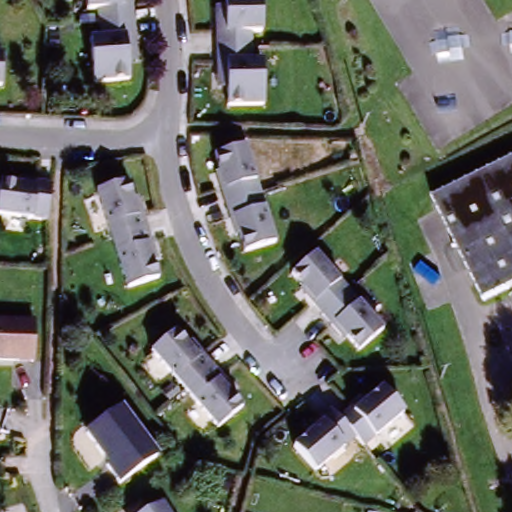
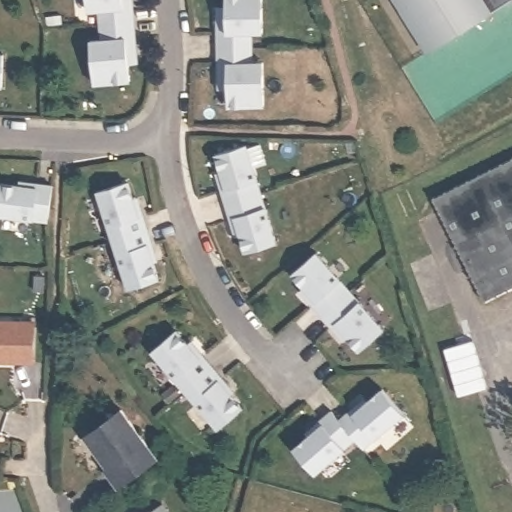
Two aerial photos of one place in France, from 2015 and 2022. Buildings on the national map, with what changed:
unchanged [(133,54),(125,54),(126,81),(91,84),(89,41),(100,40),(97,9),(86,10),(85,0),(129,0),(133,54)]
unchanged [(212,81),(210,14),(218,13),(217,0),(254,0),(255,29),(246,30),(246,61),(257,61),(258,104),(222,106),(221,81),(212,81)]
new [(512,14),(427,63),(389,0),(512,0),(512,14)]
unchanged [(5,55),(3,88),(0,88),(0,55),(5,55)]
unchanged [(245,259),(238,237),(234,238),(220,189),(221,184),(215,161),(244,153),(272,252),(245,259)]
unchanged [(435,208),(512,170),(512,292),(485,305),(435,208)]
unchanged [(123,293),(90,195),(119,186),(127,209),(133,207),(152,261),(145,264),(152,283),(123,293)]
unchanged [(53,192),(46,226),(17,223),(0,221),(0,189),(53,192)]
unchanged [(355,357),(338,338),(334,341),(304,306),(306,303),(287,280),(311,260),(377,339),(355,357)]
unchanged [(35,323),(34,361),(2,361),(0,361),(0,322),(35,323)]
unchanged [(215,431),(149,355),(172,335),(190,354),(193,351),(226,390),(222,394),(237,411),(215,431)]
unchanged [(314,425),(334,408),(340,416),(360,400),(363,403),(383,386),(404,412),(364,444),(357,437),(315,471),(295,446),(317,428),(314,425)]
unchanged [(90,435),(122,411),(159,460),(123,487),(98,452),(101,450),(90,435)]
unchanged [(148,512),(153,509),(167,500),(174,512),(148,512)]

